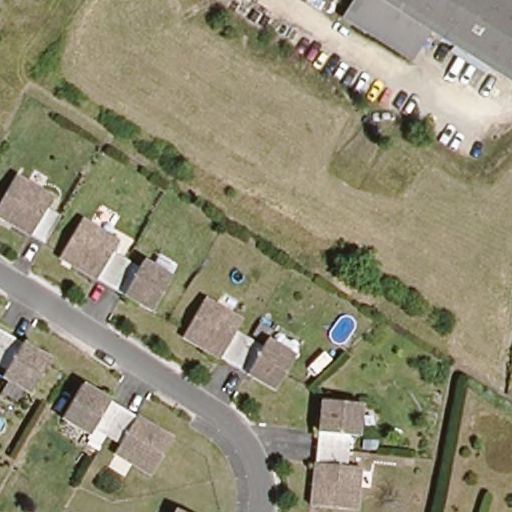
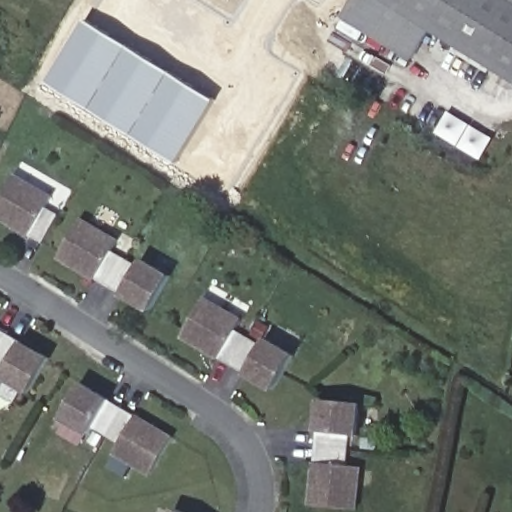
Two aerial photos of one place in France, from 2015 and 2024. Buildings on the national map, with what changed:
new [(433,27),(411,62),(341,17),(352,0),(390,0),(433,27)]
unchanged [(512,78),(390,0),(512,0),(512,78)]
new [(215,100),(176,164),(45,83),(85,19),(215,100)]
unchanged [(40,212),(50,219),(34,244),(0,223),(0,189),(8,176),(46,200),(40,212)]
unchanged [(54,254),(75,215),(109,239),(104,249),(111,255),(102,285),(54,254)]
unchanged [(111,255),(127,265),(134,257),(158,275),(140,308),(102,285),(111,255)]
unchanged [(199,297),(232,320),(226,329),(251,345),(256,336),(283,354),(263,387),(177,335),(199,297)]
unchanged [(20,392),(0,381),(0,335),(40,360),(20,392)]
unchanged [(164,434),(143,469),(109,449),(114,441),(86,422),(80,431),(65,421),(54,413),(77,381),(78,379),(164,434)]
unchanged [(346,434),(342,433),(338,464),(351,466),(343,507),(302,502),(316,397),(352,402),(346,434)]
unchanged [(180,512),(168,512),(170,507),(180,512)]

